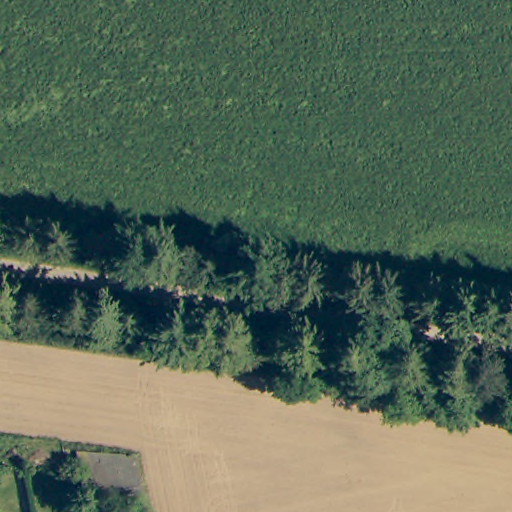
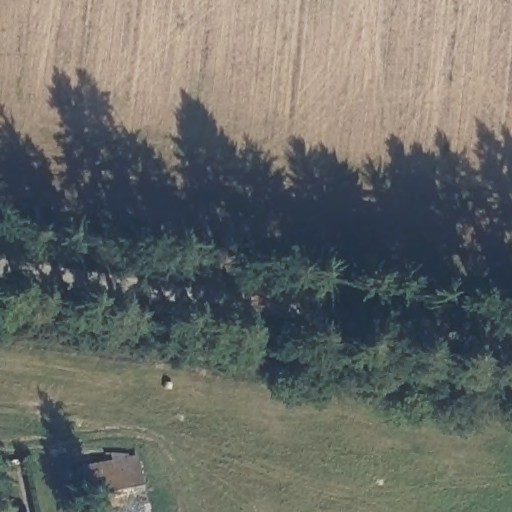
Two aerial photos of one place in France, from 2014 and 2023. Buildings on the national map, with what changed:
unchanged [(136,461),(143,492),(90,502),(80,453),(136,461)]

